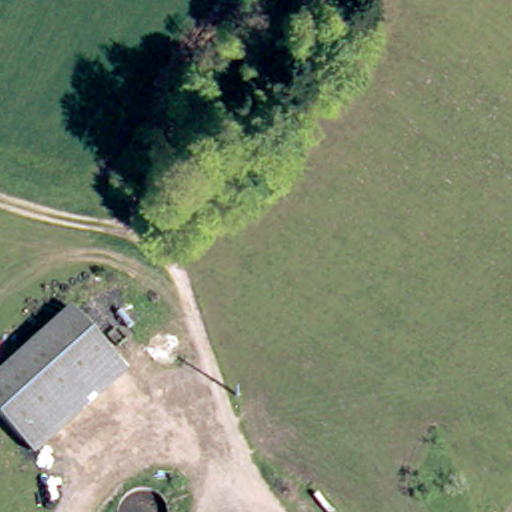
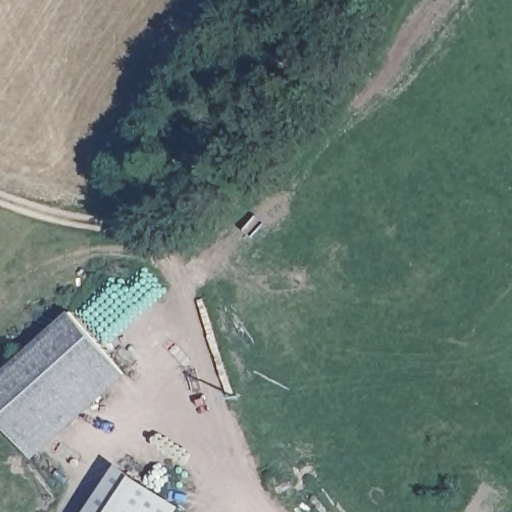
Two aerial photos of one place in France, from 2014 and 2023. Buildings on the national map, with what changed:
unchanged [(0,417),(0,388),(74,317),(95,338),(130,375),(42,460),(5,421),(0,417)]
new [(183,505),(178,512),(87,512),(120,463),(183,505)]

